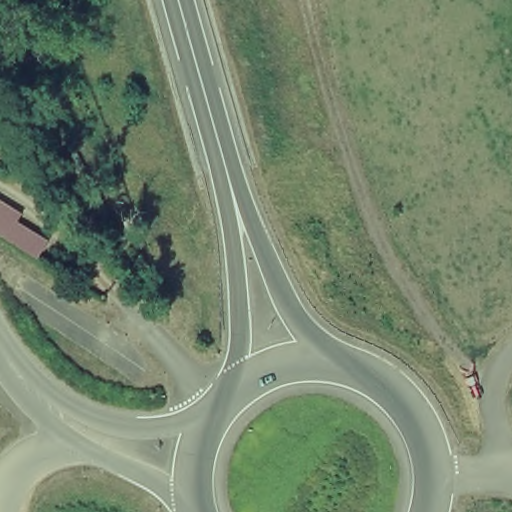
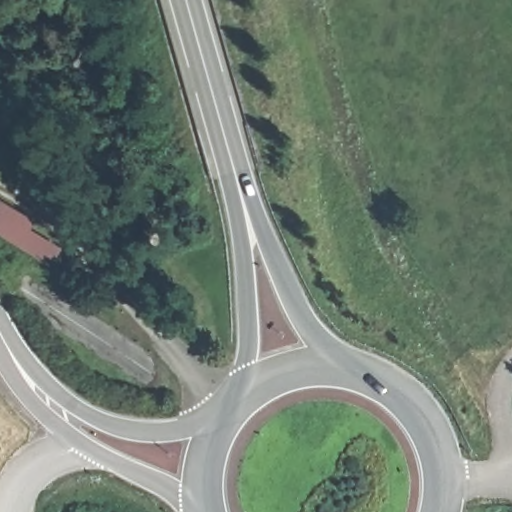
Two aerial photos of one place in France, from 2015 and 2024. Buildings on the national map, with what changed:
unchanged [(0,232),(0,199),(35,218),(32,225),(64,242),(54,263),(0,232)]

